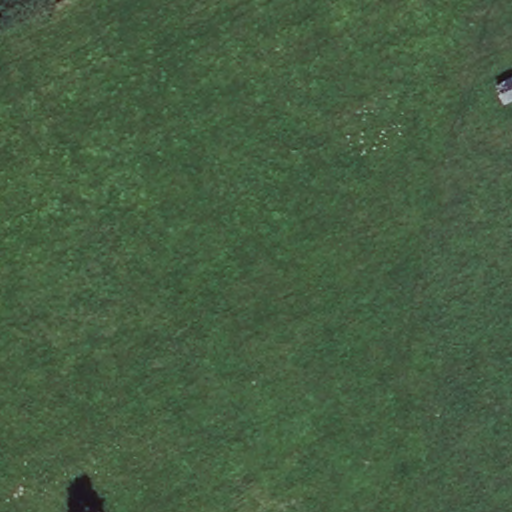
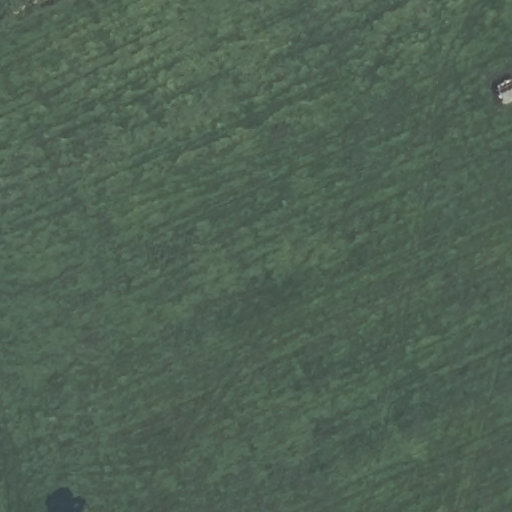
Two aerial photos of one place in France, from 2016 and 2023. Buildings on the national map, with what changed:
unchanged [(512,76),(512,96),(505,101),(497,87),(512,76)]

